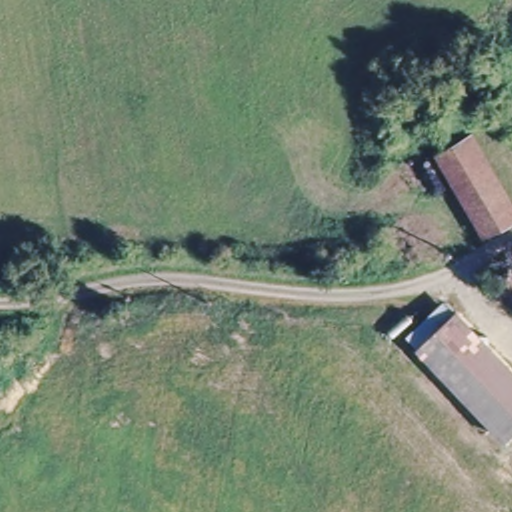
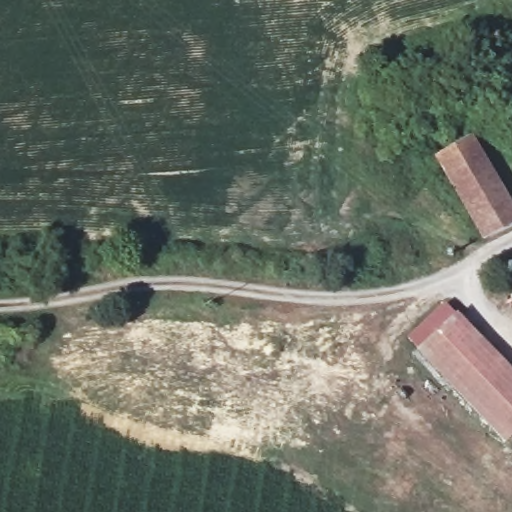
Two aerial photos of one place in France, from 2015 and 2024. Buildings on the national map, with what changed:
unchanged [(429,156),(470,132),(512,202),(512,222),(477,238),(429,156)]
unchanged [(512,440),(506,446),(404,340),(443,301),(512,370),(512,440)]

